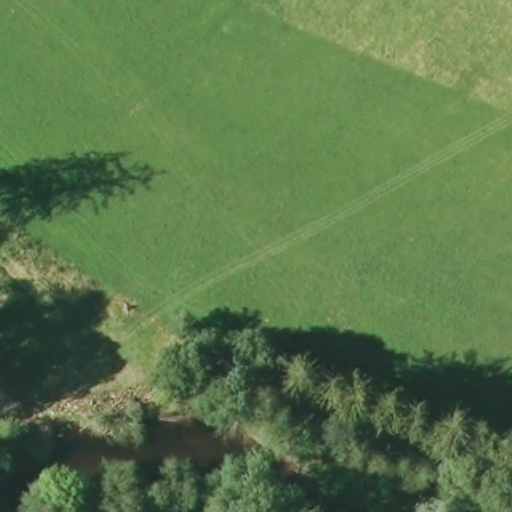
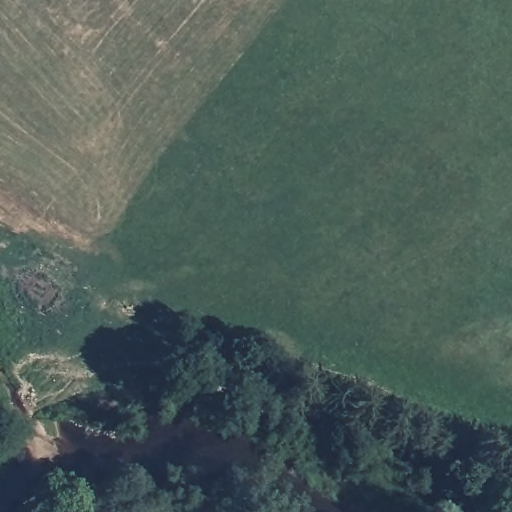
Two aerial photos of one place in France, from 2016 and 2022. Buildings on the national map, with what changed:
unchanged [(189,310),(180,318),(170,307),(177,298),(189,310)]

